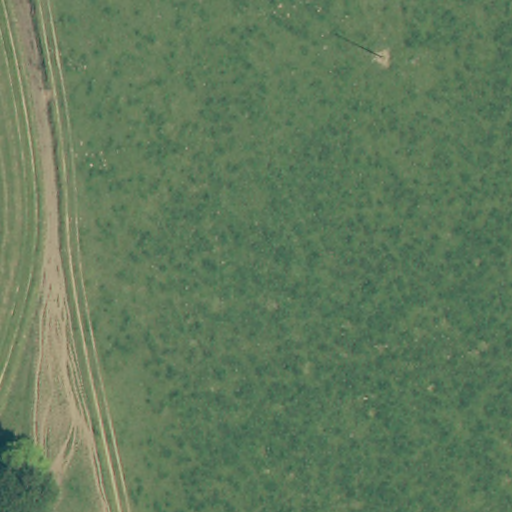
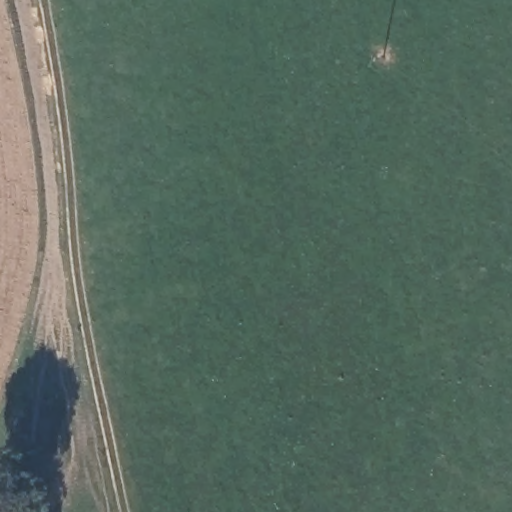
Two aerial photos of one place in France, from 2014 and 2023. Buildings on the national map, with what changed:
[]

